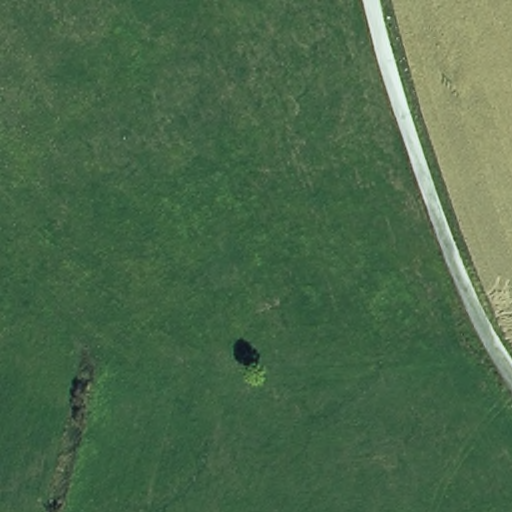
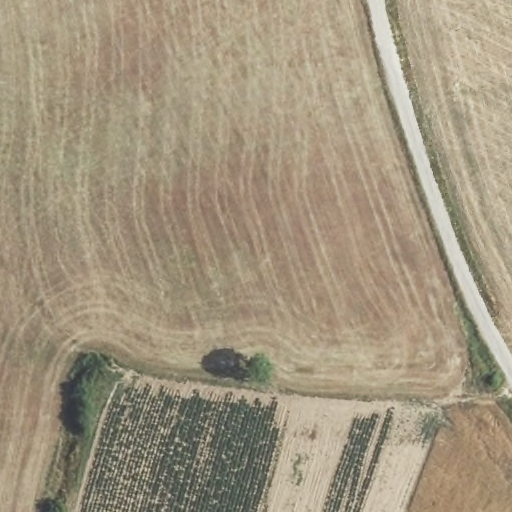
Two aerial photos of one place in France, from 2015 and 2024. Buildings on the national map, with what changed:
[]

